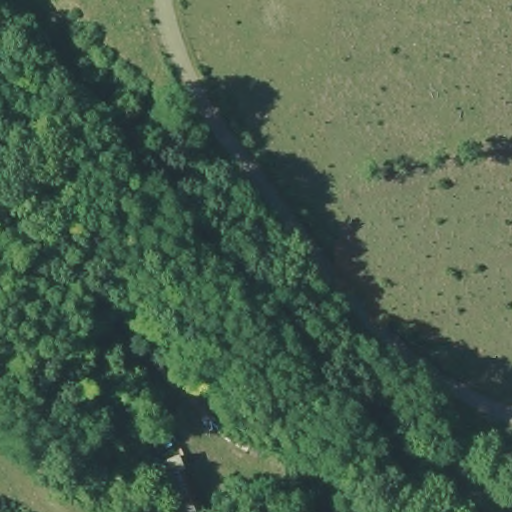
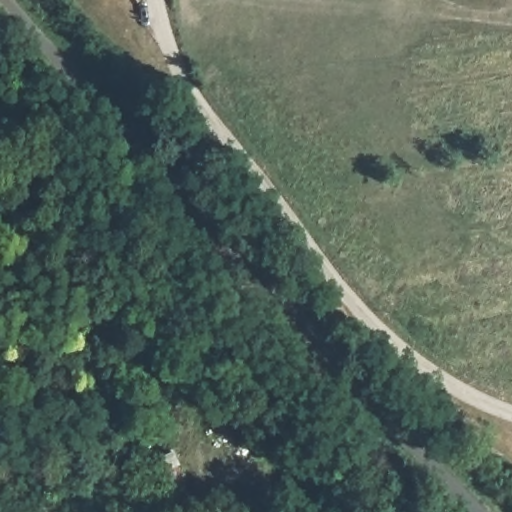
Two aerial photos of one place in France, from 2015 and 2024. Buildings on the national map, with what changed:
unchanged [(150,512),(136,470),(177,453),(195,512),(150,512)]

